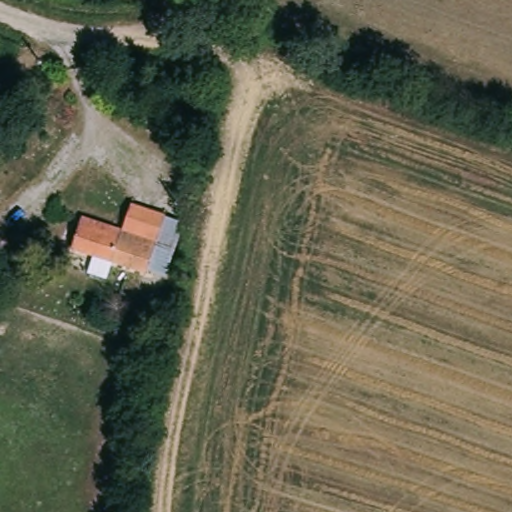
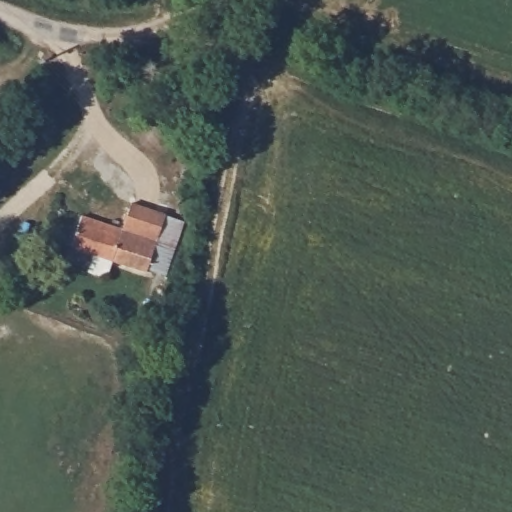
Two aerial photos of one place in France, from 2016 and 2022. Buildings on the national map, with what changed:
unchanged [(169,215),(160,242),(126,230),(135,204),(169,215)]
unchanged [(151,272),(76,247),(86,218),(126,230),(160,242),(151,272)]

